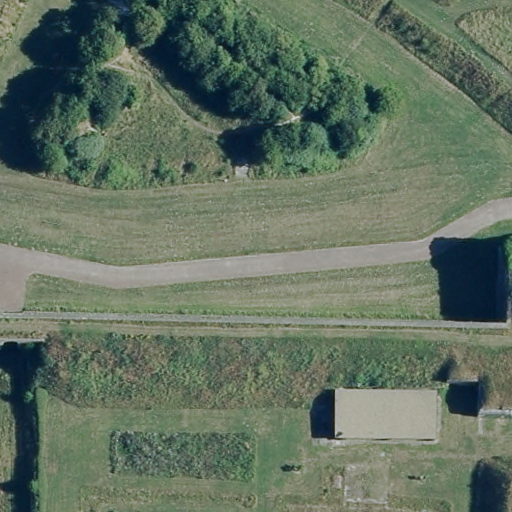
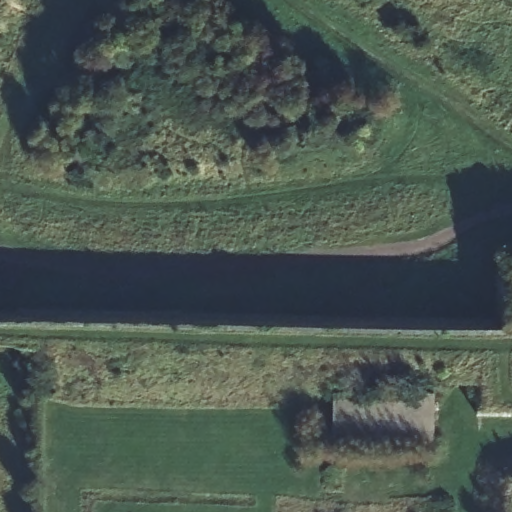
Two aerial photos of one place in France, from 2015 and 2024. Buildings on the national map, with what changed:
unchanged [(335,395),(435,395),(435,444),(335,442),(335,395)]

